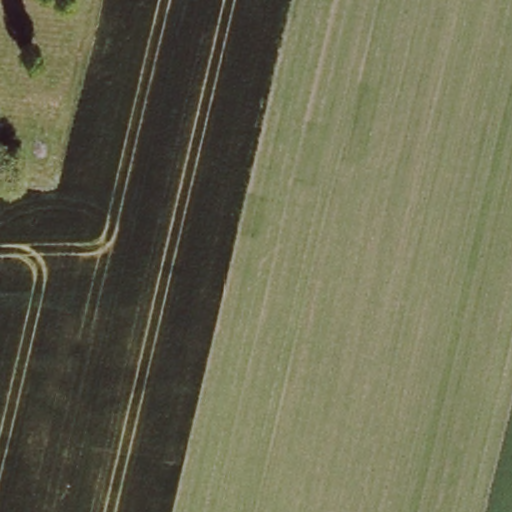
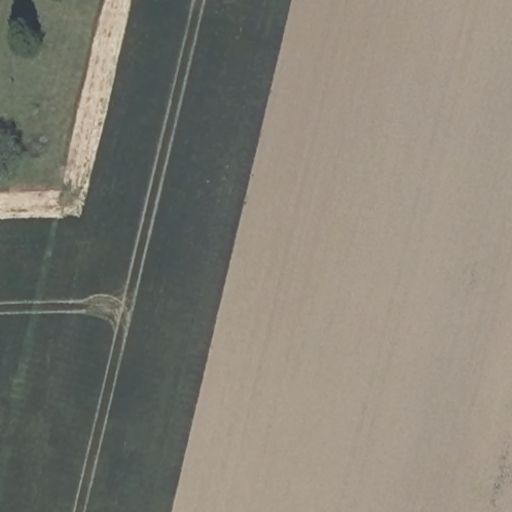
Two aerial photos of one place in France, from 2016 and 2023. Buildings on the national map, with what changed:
[]

